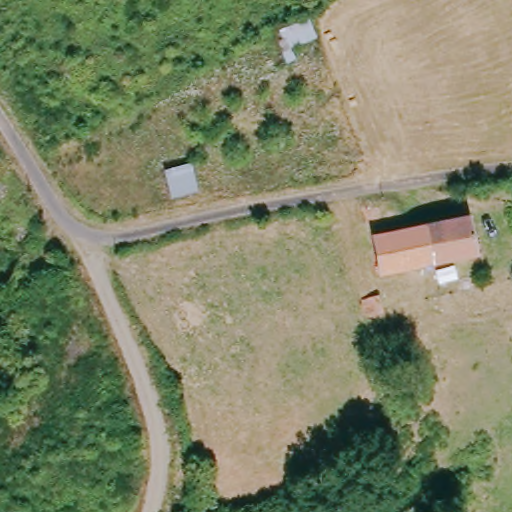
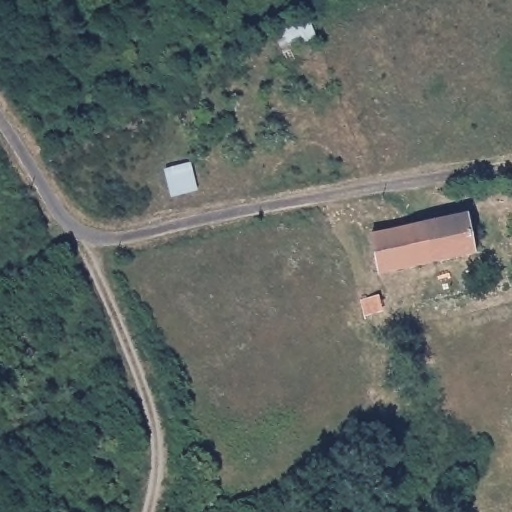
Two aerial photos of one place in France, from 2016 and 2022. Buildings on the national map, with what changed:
unchanged [(459,216),(473,257),(378,278),(367,238),(459,216)]

